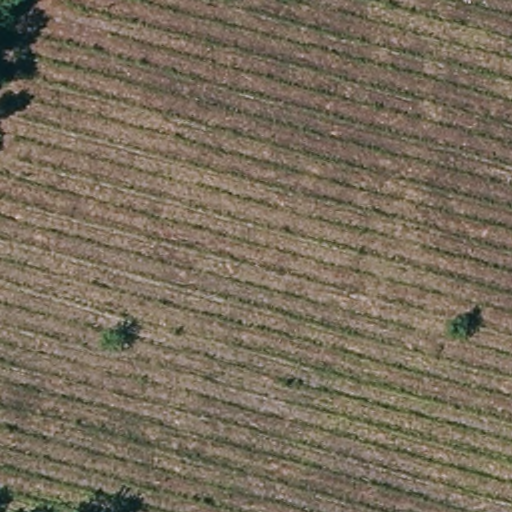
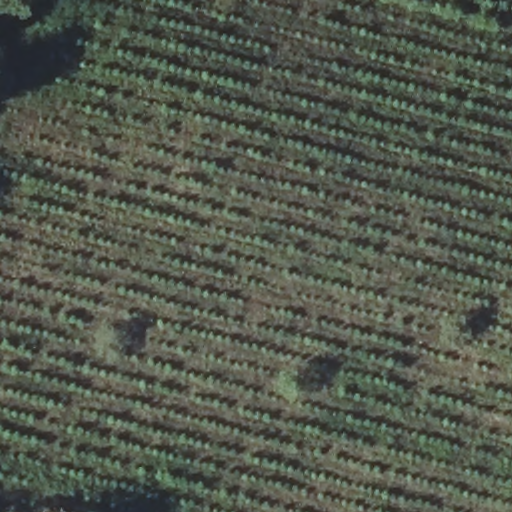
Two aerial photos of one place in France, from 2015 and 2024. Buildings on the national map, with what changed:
[]

